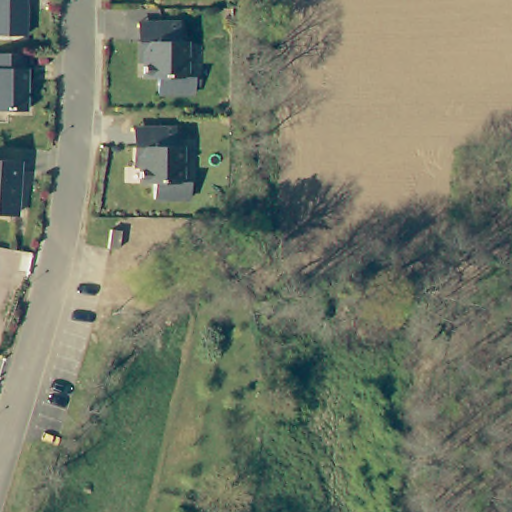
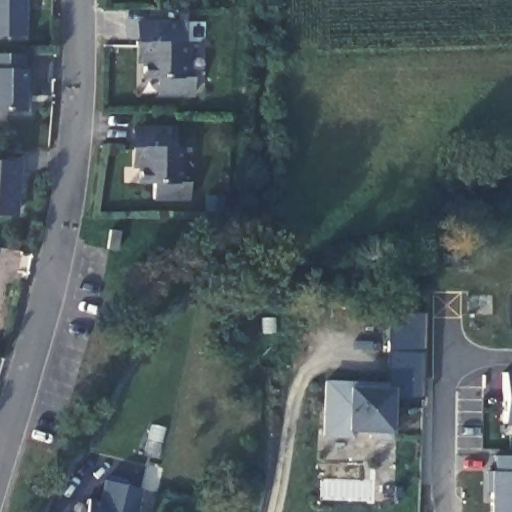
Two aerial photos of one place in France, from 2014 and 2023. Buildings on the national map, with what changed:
unchanged [(20,0),(19,2),(23,3),(22,32),(0,31),(0,0),(20,0)]
unchanged [(188,39),(193,41),(193,76),(200,78),(200,94),(164,91),(164,77),(150,76),(152,20),(189,21),(188,39)]
unchanged [(21,46),(22,63),(24,63),(24,106),(0,106),(0,46),(21,46)]
unchanged [(176,146),(183,148),(183,183),(190,184),(190,201),(153,199),(154,183),(139,183),(139,126),(176,127),(176,146)]
unchanged [(0,216),(0,177),(18,178),(16,217),(0,216)]
new [(389,312),(425,313),(422,398),(394,398),(395,389),(386,388),(388,381),(389,312)]
new [(504,370),(512,370),(512,425),(503,425),(504,370)]
new [(388,381),(386,388),(395,389),(392,434),(346,432),(349,439),(322,437),(325,379),(388,381)]
new [(141,489),(136,508),(140,509),(139,512),(80,512),(82,503),(87,505),(88,499),(100,501),(106,481),(141,489)]

